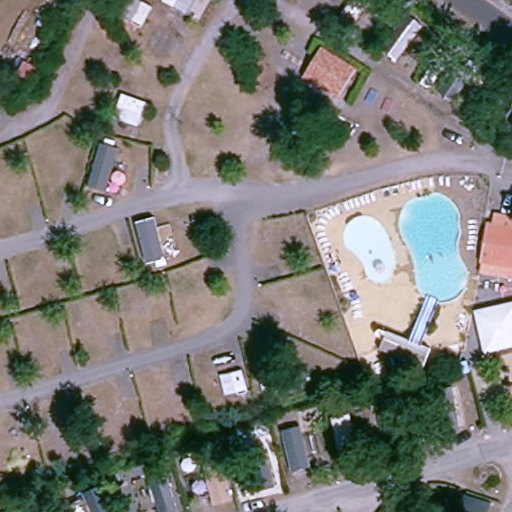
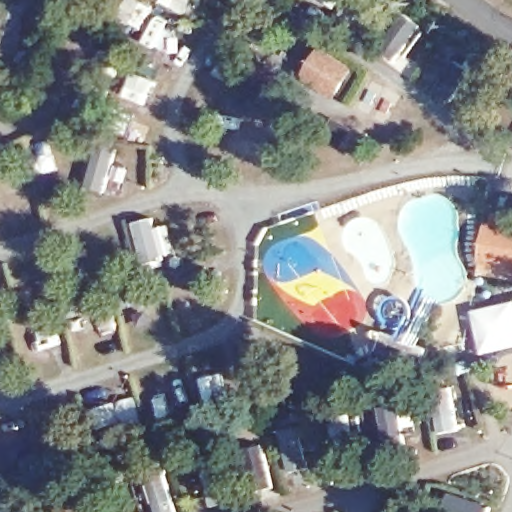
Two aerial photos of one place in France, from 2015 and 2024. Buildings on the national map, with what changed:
unchanged [(314,47),(345,67),(329,96),(297,76),(314,47)]
unchanged [(486,226),(493,227),(494,226),(496,215),(512,218),(512,279),(477,273),(479,262),(486,226)]
unchanged [(512,305),(512,349),(483,356),(475,314),(512,305)]

